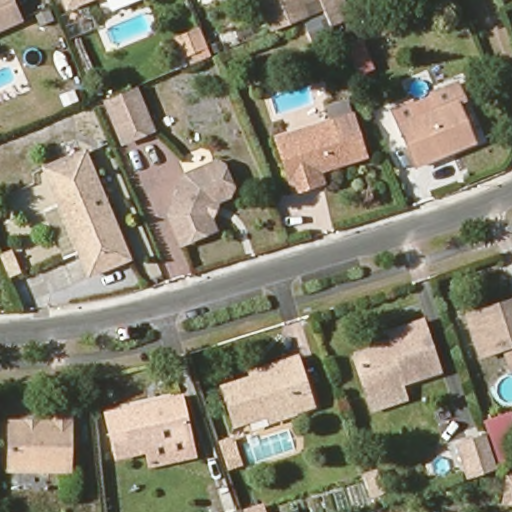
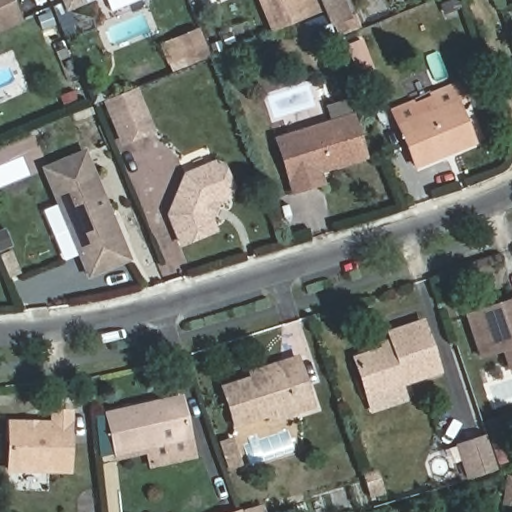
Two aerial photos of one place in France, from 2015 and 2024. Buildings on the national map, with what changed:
unchanged [(10,0),(19,21),(0,29),(0,0),(10,0)]
unchanged [(59,0),(81,0),(62,8),(59,0)]
unchanged [(102,0),(132,0),(106,10),(102,0)]
unchanged [(271,28),(260,0),(298,0),(305,15),(271,28)]
unchanged [(446,12),(443,3),(451,0),(454,0),(457,8),(446,12)]
unchanged [(239,41),(226,46),(222,36),(235,31),(239,41)]
unchanged [(204,50),(184,57),(177,42),(197,34),(204,50)]
unchanged [(478,142),(420,166),(397,110),(416,102),(418,105),(438,97),(436,94),(462,84),(469,100),(461,103),(478,142)]
unchanged [(152,130),(123,142),(106,100),(135,89),(152,130)]
unchanged [(312,186),(293,191),(277,139),(352,116),(365,156),(318,170),(322,183),(312,186)]
unchanged [(53,213),(65,208),(50,169),(89,152),(132,259),(96,273),(87,252),(84,254),(82,250),(70,255),(53,213)]
unchanged [(210,209),(207,207),(215,225),(181,238),(169,210),(185,170),(214,157),(222,160),(232,183),(229,190),(211,198),(215,200),(210,209)]
unchanged [(481,352),(467,310),(497,300),(512,295),(512,362),(511,362),(505,343),(481,352)]
unchanged [(371,405),(367,390),(355,353),(383,343),(382,338),(391,335),(390,328),(422,317),(438,366),(400,379),(405,393),(371,405)]
unchanged [(268,416),(235,426),(222,386),(251,377),(250,371),(280,362),(296,356),(312,407),(296,413),(270,421),(268,416)]
unchanged [(150,461),(145,441),(115,448),(106,408),(181,391),(190,431),(194,451),(150,461)]
unchanged [(70,471),(9,470),(10,422),(51,423),(51,411),(70,411),(70,471)]
unchanged [(495,465),(467,474),(457,445),(486,436),(495,465)]
unchanged [(240,463),(227,467),(220,444),(232,440),(240,463)]
unchanged [(261,505),(263,512),(242,512),(261,505)]
unchanged [(241,510),(242,512),(234,512),(241,510)]

